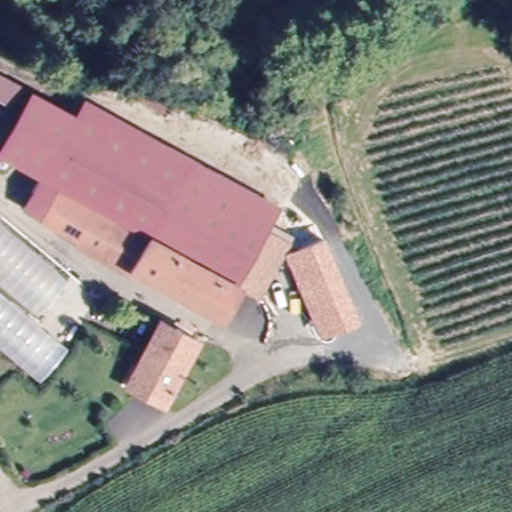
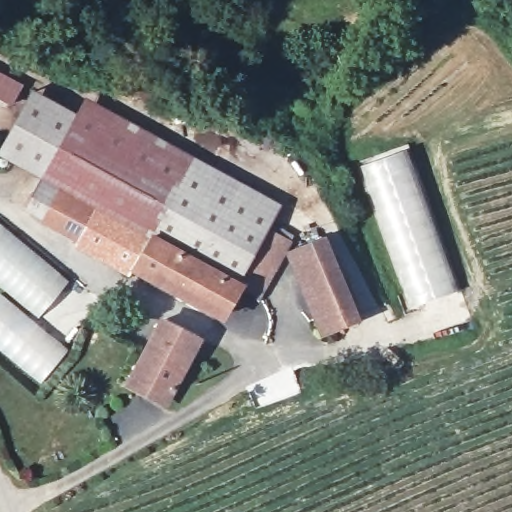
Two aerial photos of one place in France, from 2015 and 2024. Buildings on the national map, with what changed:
unchanged [(0,101),(0,66),(26,79),(11,107),(0,101)]
unchanged [(42,80),(84,105),(45,166),(4,140),(42,80)]
unchanged [(92,94),(281,211),(273,224),(85,106),(92,94)]
unchanged [(84,105),(85,106),(273,224),(267,232),(288,246),(279,261),(254,300),(233,287),(214,318),(130,265),(127,270),(75,236),(77,232),(78,230),(26,196),(45,166),(84,105)]
new [(407,148),(457,290),(410,308),(358,166),(407,148)]
unchanged [(0,284),(0,222),(73,280),(45,319),(0,284)]
unchanged [(324,236),(358,321),(321,337),(284,254),(324,236)]
unchanged [(0,346),(0,296),(71,356),(42,386),(0,346)]
unchanged [(166,401),(130,380),(166,319),(202,341),(166,401)]

